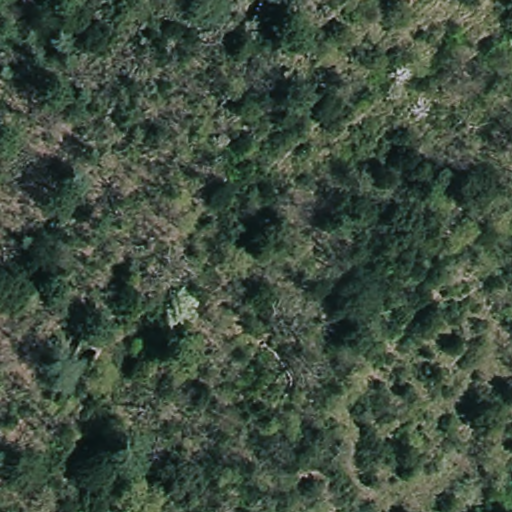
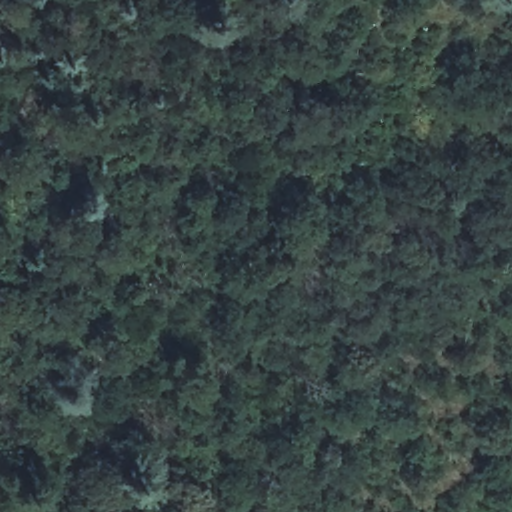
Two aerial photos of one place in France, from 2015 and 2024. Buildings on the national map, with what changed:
unchanged [(93,367),(70,357),(79,337),(102,347),(93,367)]

